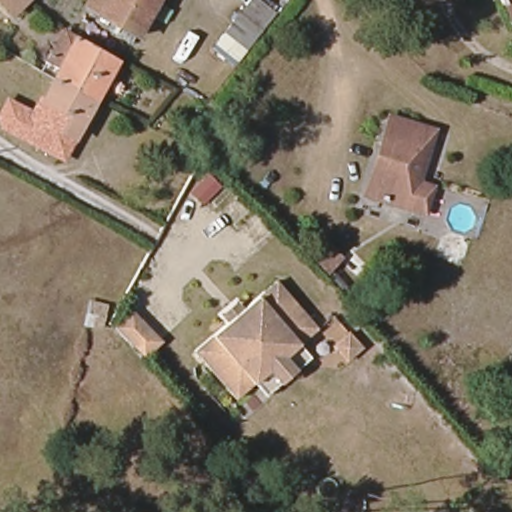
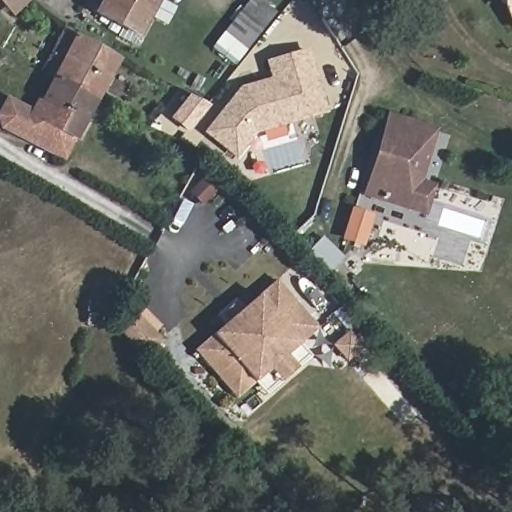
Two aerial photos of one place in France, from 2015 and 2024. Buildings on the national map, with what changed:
unchanged [(10,13),(0,3),(0,0),(25,0),(10,13)]
unchanged [(136,35),(95,11),(102,0),(157,0),(136,35)]
unchanged [(236,65),(214,50),(251,0),(256,0),(275,13),(236,65)]
unchanged [(502,0),(512,0),(512,18),(502,0)]
unchanged [(75,48),(114,66),(90,109),(55,86),(75,48)]
new [(235,159),(202,133),(240,86),(270,79),(265,61),(309,48),(327,113),(255,134),(235,159)]
unchanged [(9,132),(0,127),(0,124),(3,118),(8,111),(10,106),(33,118),(35,113),(40,102),(45,105),(55,86),(90,109),(69,145),(61,160),(30,144),(20,138),(15,136),(9,132)]
unchanged [(424,213),(409,209),(368,197),(376,168),(381,149),(389,121),(430,134),(417,184),(430,188),(424,213)]
unchanged [(302,246),(317,232),(344,259),(328,274),(302,246)]
unchanged [(317,328),(285,356),(297,368),(279,381),(268,367),(233,396),(195,348),(277,278),(317,328)]
unchanged [(161,339),(144,357),(113,323),(131,307),(161,339)]
new [(347,332),(359,347),(328,374),(316,360),(347,332)]

